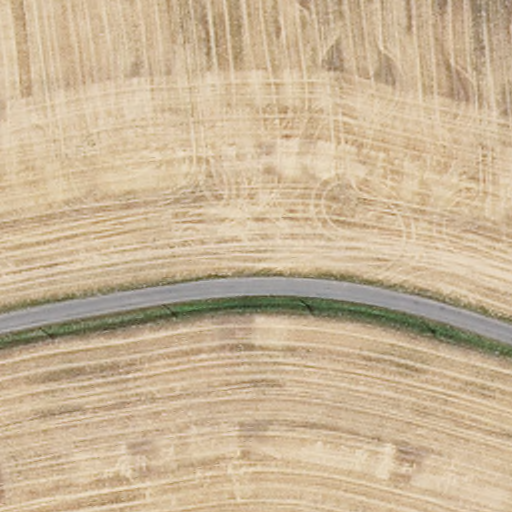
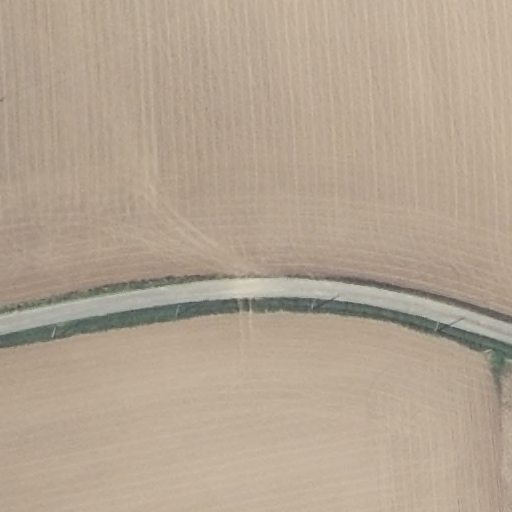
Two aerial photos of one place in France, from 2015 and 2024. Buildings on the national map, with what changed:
[]

